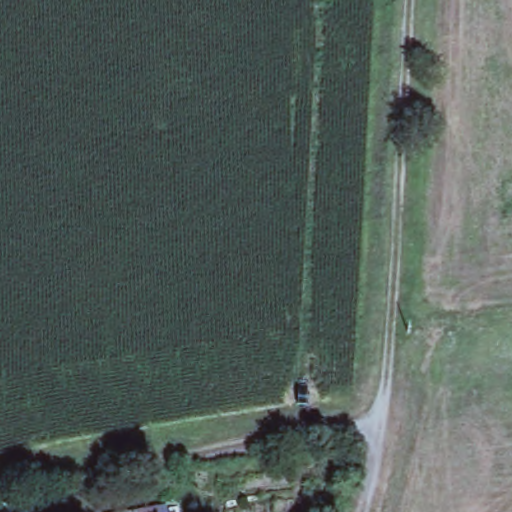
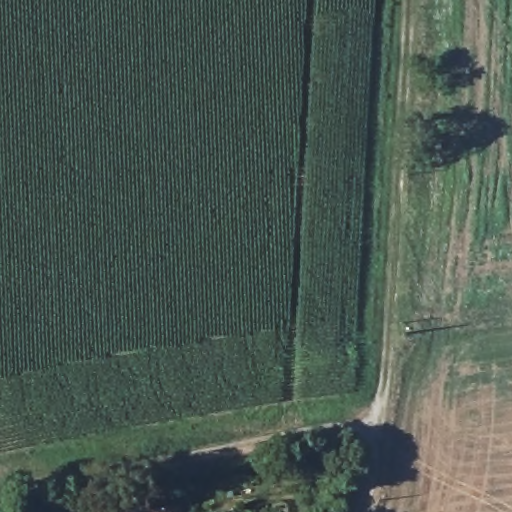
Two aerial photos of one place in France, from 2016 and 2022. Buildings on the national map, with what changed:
unchanged [(168,512),(141,512),(167,507),(168,512)]
unchanged [(14,512),(5,512),(14,509),(14,512)]

